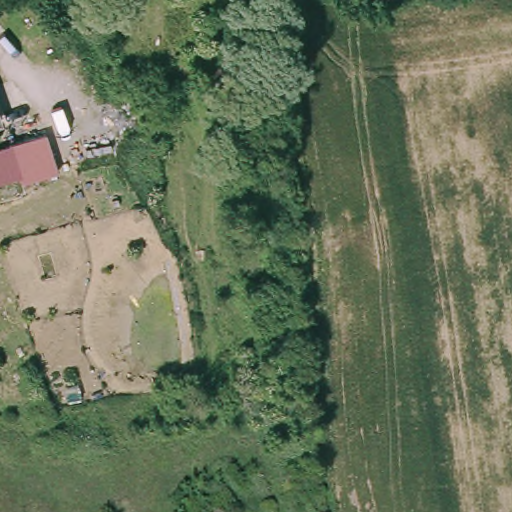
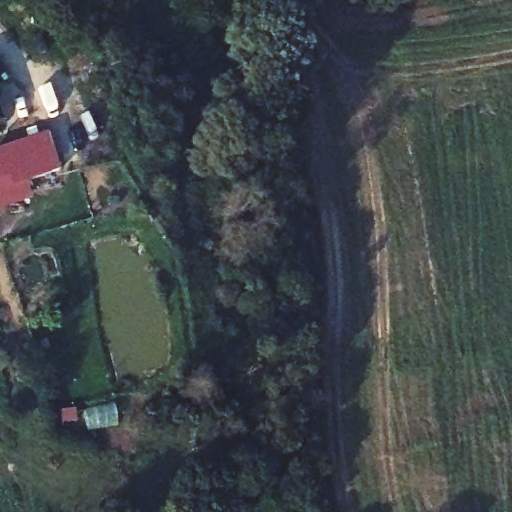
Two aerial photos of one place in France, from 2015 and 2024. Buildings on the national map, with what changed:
unchanged [(46,134),(58,172),(21,184),(20,177),(0,183),(0,149),(12,145),(46,134)]

